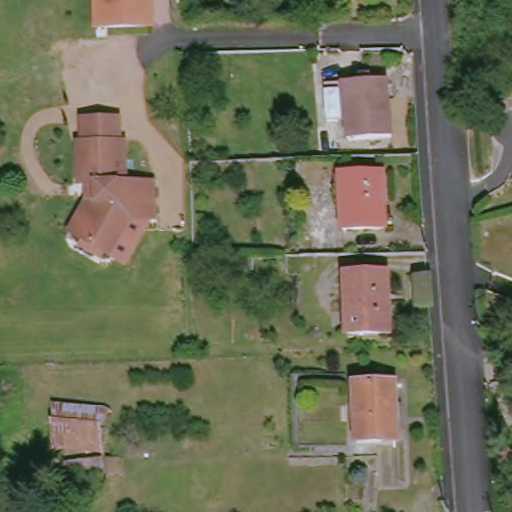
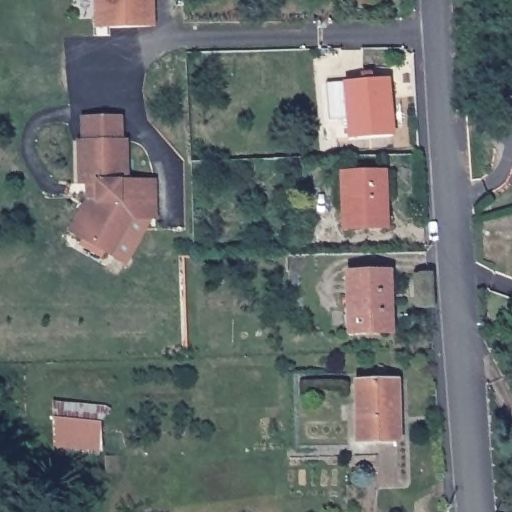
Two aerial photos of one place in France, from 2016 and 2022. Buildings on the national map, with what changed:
unchanged [(102,0),(159,0),(160,26),(112,27),(102,28),(102,0)]
unchanged [(396,140),(353,141),(353,121),(334,120),(334,83),(395,82),(396,140)]
unchanged [(91,201),(91,184),(81,184),(82,143),(85,143),(85,120),(121,120),(122,143),(128,142),(128,184),(158,183),(160,219),(137,220),(115,257),(83,238),(73,232),(91,201)]
unchanged [(347,233),(347,182),(387,180),(389,232),(347,233)]
unchanged [(397,338),(355,340),(353,281),(394,279),(397,338)]
unchanged [(396,386),(399,446),(360,446),(358,387),(396,386)]
unchanged [(109,409),(105,427),(108,456),(57,454),(55,428),(57,403),(109,409)]

